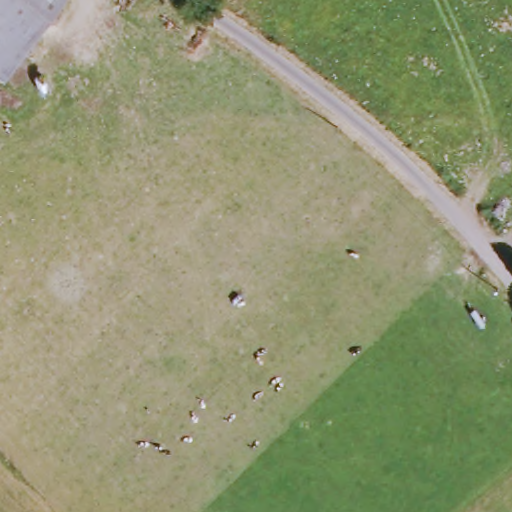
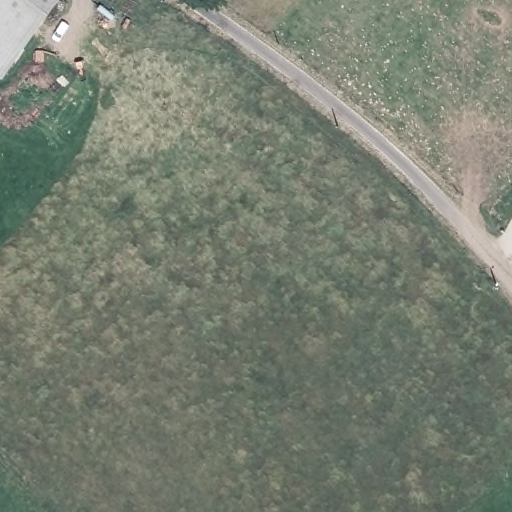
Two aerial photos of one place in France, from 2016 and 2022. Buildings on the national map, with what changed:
unchanged [(2,80),(0,79),(0,0),(68,0),(2,80)]

